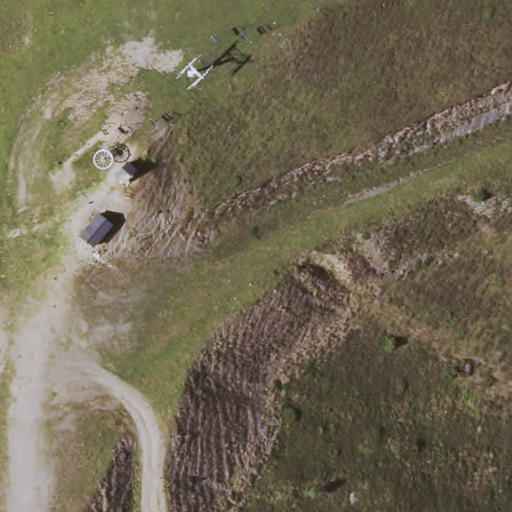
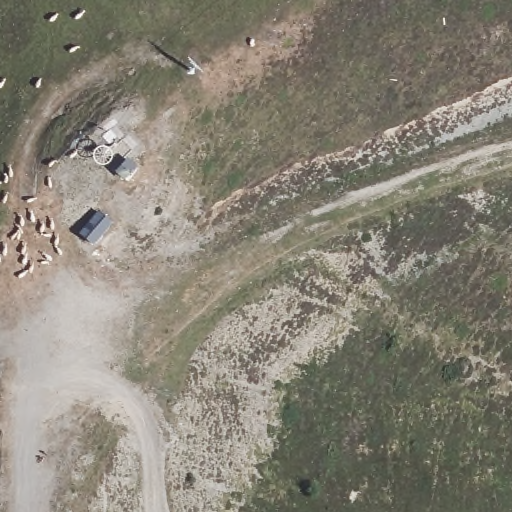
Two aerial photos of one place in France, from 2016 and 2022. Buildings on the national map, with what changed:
unchanged [(124,161),(134,170),(123,182),(114,174),(124,161)]
unchanged [(97,213),(111,226),(92,247),(78,235),(97,213)]

